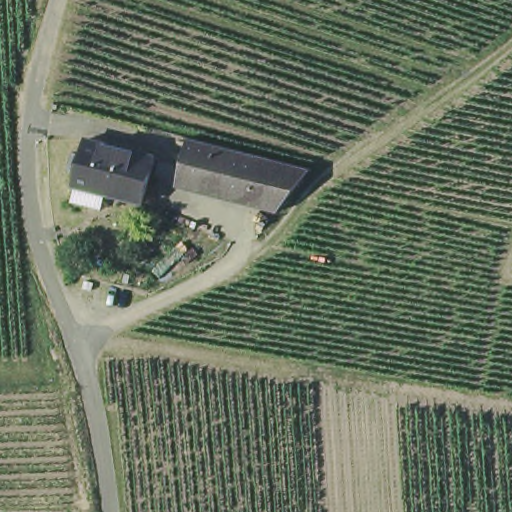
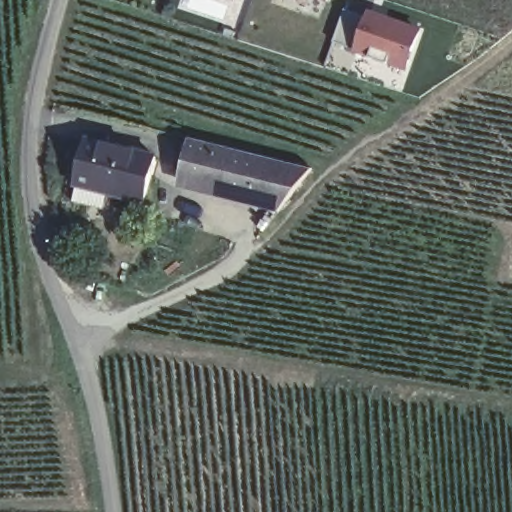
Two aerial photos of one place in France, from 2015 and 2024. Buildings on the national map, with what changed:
new [(311,0),(326,0),(325,5),(311,0)]
new [(407,73),(350,55),(351,50),(332,43),(342,11),(361,16),(363,10),(419,30),(407,73)]
unchanged [(284,208),(182,181),(194,133),(319,164),(284,208)]
unchanged [(79,202),(83,185),(79,184),(81,176),(90,139),(160,158),(150,195),(149,201),(130,196),(114,193),(110,209),(79,202)]
unchanged [(87,289),(89,281),(96,283),(95,291),(87,289)]

